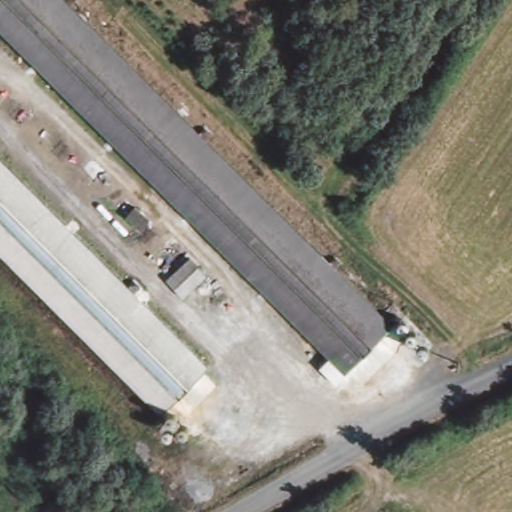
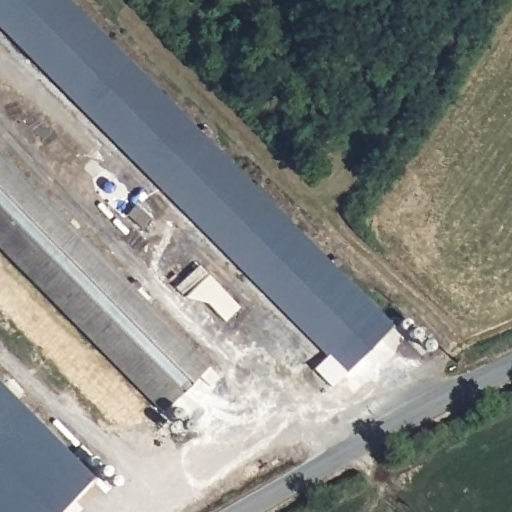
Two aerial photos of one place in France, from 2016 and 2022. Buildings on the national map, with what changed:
unchanged [(344,371),(0,30),(0,0),(65,0),(390,320),(344,371)]
unchanged [(157,409),(0,250),(0,154),(203,362),(157,409)]
new [(55,512),(0,512),(0,385),(91,477),(55,512)]

